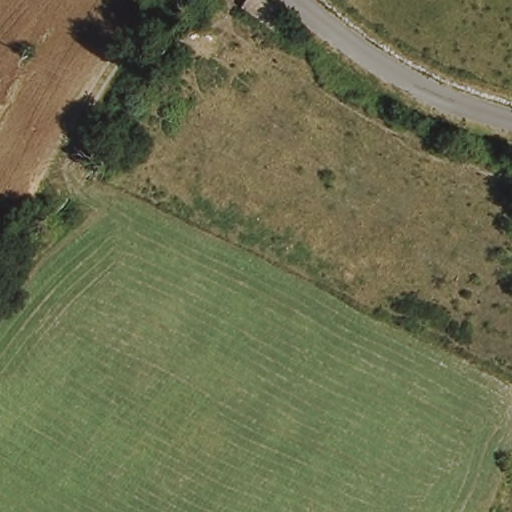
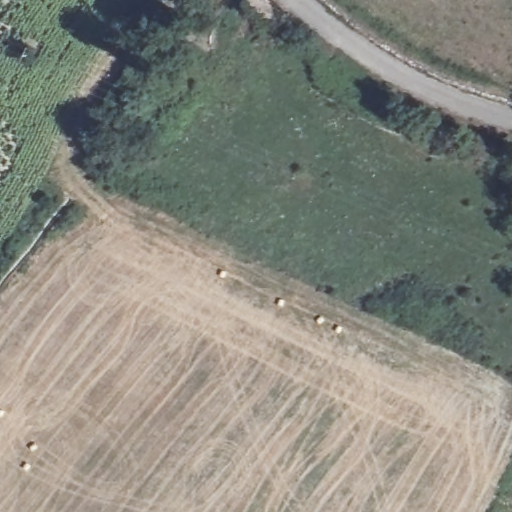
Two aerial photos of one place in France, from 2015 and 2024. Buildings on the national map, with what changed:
unchanged [(290,0),(307,0),(302,7),(290,0)]

